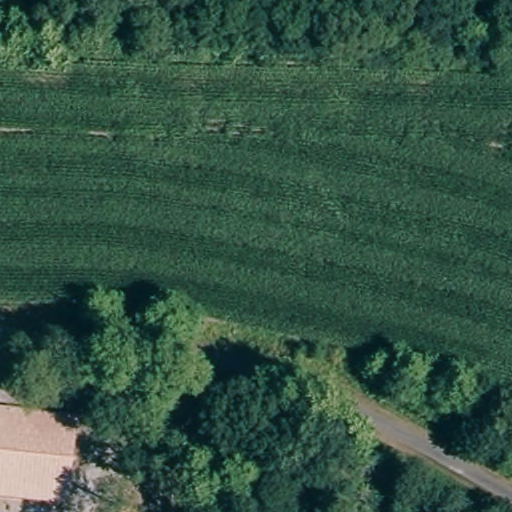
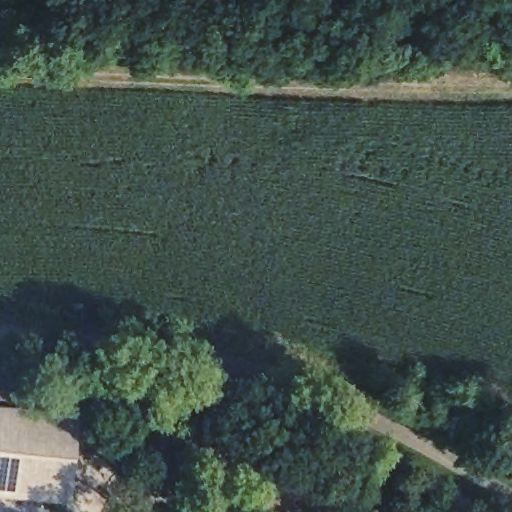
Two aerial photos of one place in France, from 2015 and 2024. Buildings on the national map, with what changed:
unchanged [(82,418),(72,505),(0,497),(0,409),(82,418)]

